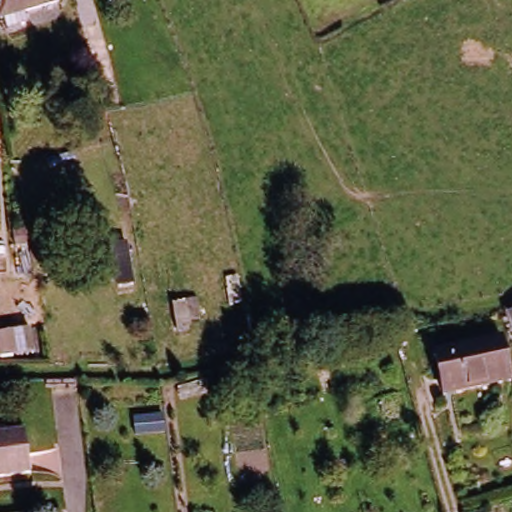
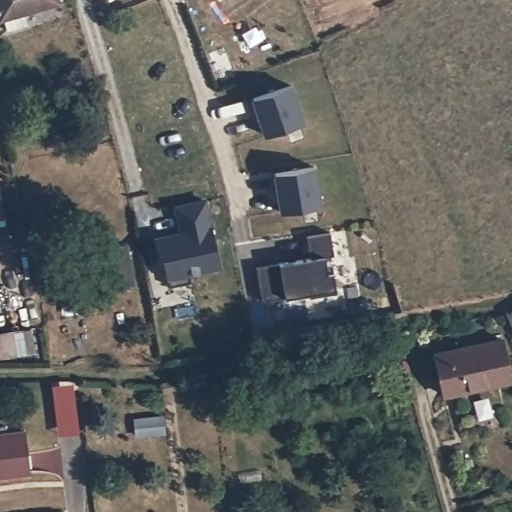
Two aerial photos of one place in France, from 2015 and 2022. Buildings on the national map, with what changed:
unchanged [(58,0),(60,8),(0,22),(0,0),(58,0)]
new [(298,87),(312,125),(273,139),(266,116),(262,118),(257,102),(298,87)]
new [(320,170),(327,209),(287,215),(283,192),(279,192),(277,176),(320,170)]
new [(185,233),(178,206),(207,200),(222,266),(192,273),(194,282),(173,287),(167,257),(162,258),(158,239),(185,233)]
new [(332,237),(335,260),(328,261),(330,270),(335,269),(340,298),(312,302),(311,298),(264,305),(259,270),(313,261),(308,240),(332,237)]
new [(130,250),(136,291),(121,293),(113,252),(130,250)]
unchanged [(37,327),(41,351),(0,359),(0,334),(37,327)]
unchanged [(433,356),(498,347),(505,385),(440,395),(433,356)]
unchanged [(30,427),(32,470),(0,473),(0,429),(30,427)]

